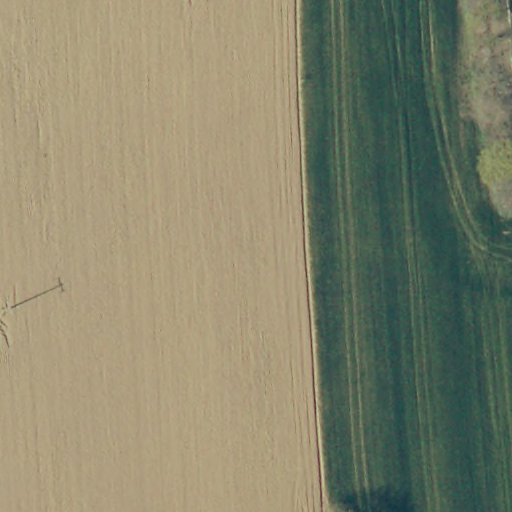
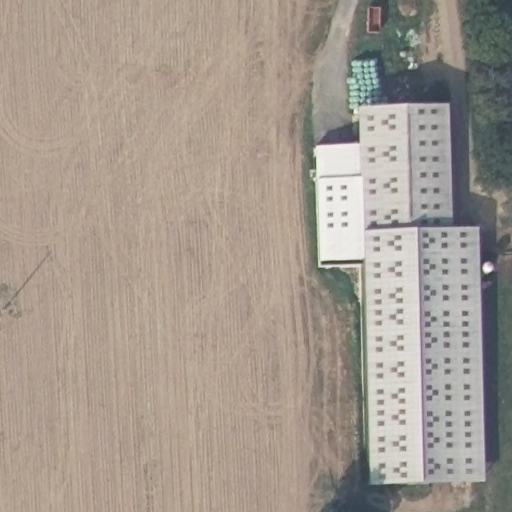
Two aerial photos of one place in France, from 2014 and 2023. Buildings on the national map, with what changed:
new [(502,56),(495,56),(496,0),(512,0),(512,84),(502,56)]
new [(443,106),(446,230),(473,229),(482,484),(364,488),(355,233),(351,110),(443,106)]

